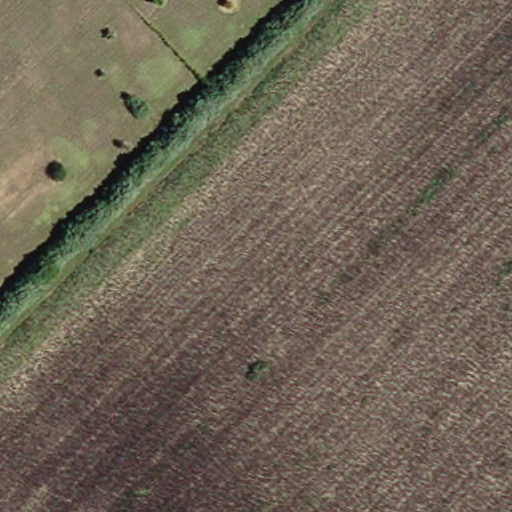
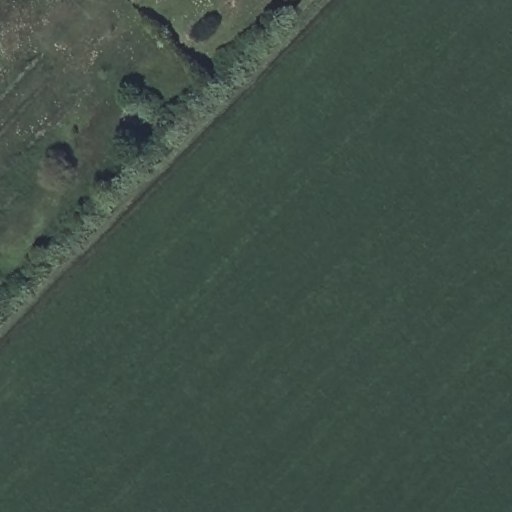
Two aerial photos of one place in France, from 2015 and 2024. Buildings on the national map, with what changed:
[]

